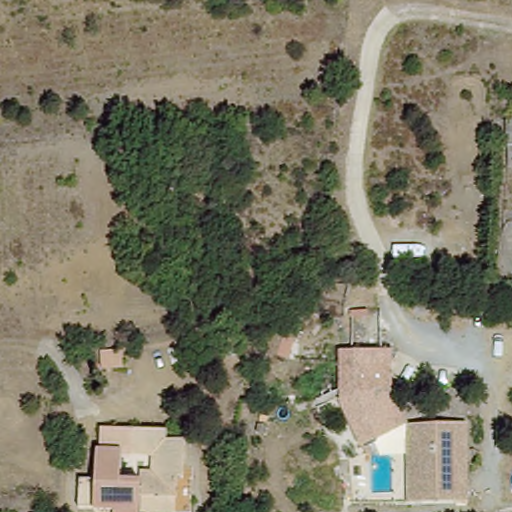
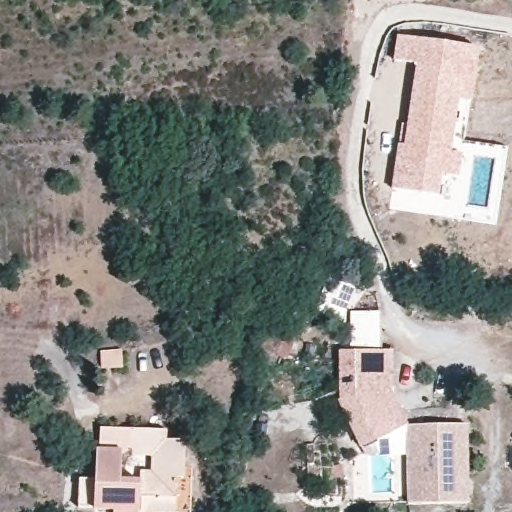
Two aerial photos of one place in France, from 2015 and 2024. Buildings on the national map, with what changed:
new [(395,150),(406,114),(414,65),(391,60),(396,34),(480,48),(470,102),(459,100),(451,150),(462,153),(457,177),(442,174),(438,195),(390,187),(395,150)]
unchanged [(507,149),(499,148),(500,138),(505,139),(507,122),(512,123),(512,167),(505,165),(507,149)]
new [(324,282),(346,283),(344,316),(322,315),(324,282)]
new [(351,352),(352,311),(380,312),(381,353),(351,352)]
unchanged [(121,368),(99,368),(99,352),(122,352),(121,368)]
unchanged [(391,353),(386,393),(370,396),(381,425),(384,433),(359,445),(336,400),(335,391),(337,352),(391,353)]
new [(384,433),(381,425),(370,396),(386,393),(391,353),(393,392),(412,428),(410,454),(369,455),(364,443),(384,433)]
unchanged [(457,429),(455,504),(408,503),(412,428),(457,429)]
unchanged [(75,507),(76,480),(94,481),(95,451),(100,452),(101,429),(166,433),(166,440),(188,442),(186,478),(195,480),(192,512),(144,512),(139,511),(138,512),(109,512),(110,510),(75,507)]
unchanged [(455,504),(457,429),(475,430),(472,504),(455,504)]

